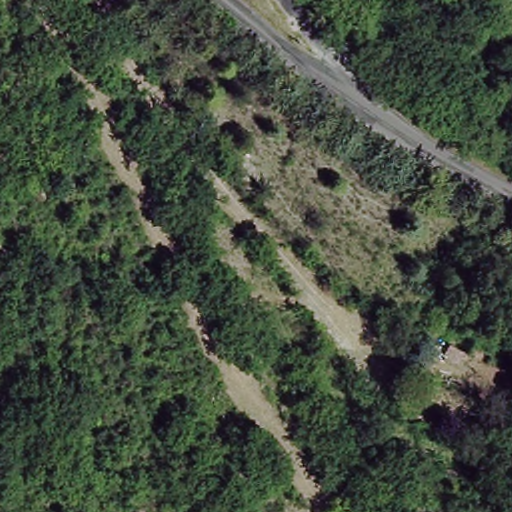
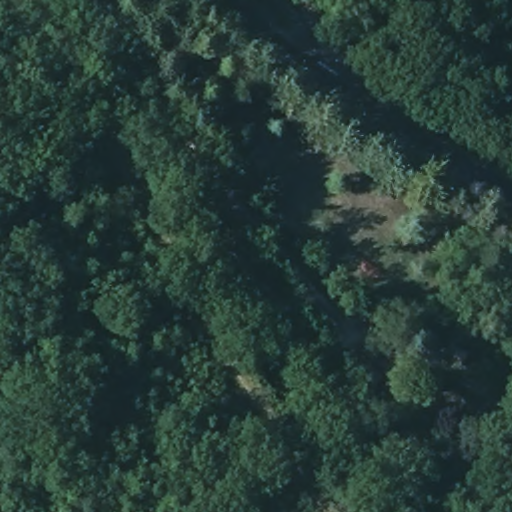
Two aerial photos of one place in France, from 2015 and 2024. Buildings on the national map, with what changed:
unchanged [(446,359),(451,344),(476,355),(464,371),(446,359)]

